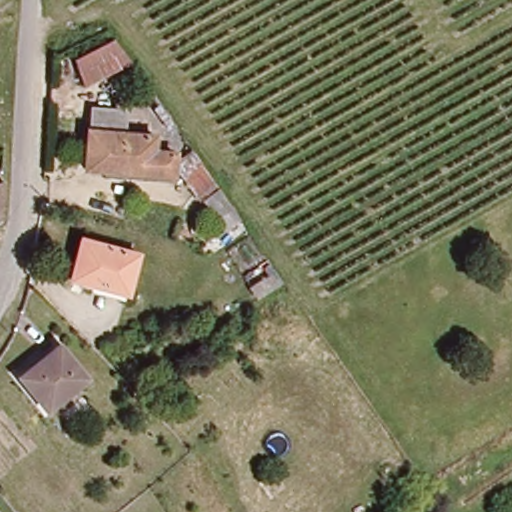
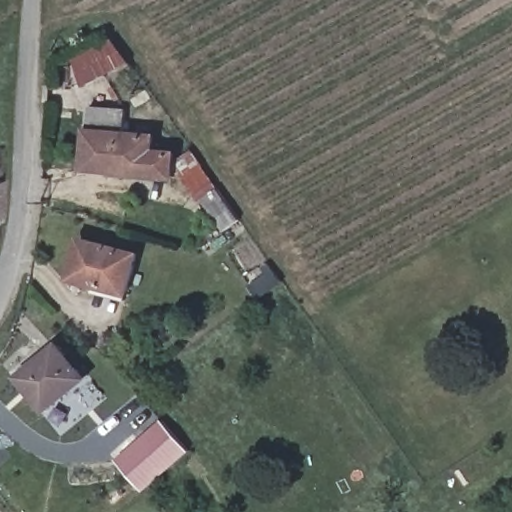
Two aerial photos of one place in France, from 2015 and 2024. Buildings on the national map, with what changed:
unchanged [(73,57),(113,40),(131,57),(80,82),(73,57)]
unchanged [(81,130),(146,135),(145,152),(169,154),(168,175),(79,167),(81,130)]
unchanged [(185,153),(203,179),(229,216),(214,227),(170,162),(185,153)]
unchanged [(89,286),(76,282),(64,278),(66,270),(76,236),(136,254),(124,293),(90,283),(89,286)]
unchanged [(84,377),(44,408),(18,375),(57,343),(84,377)]
new [(144,492),(116,458),(161,419),(192,451),(144,492)]

